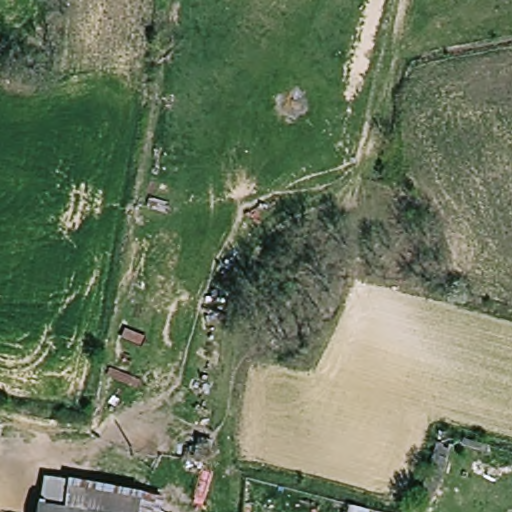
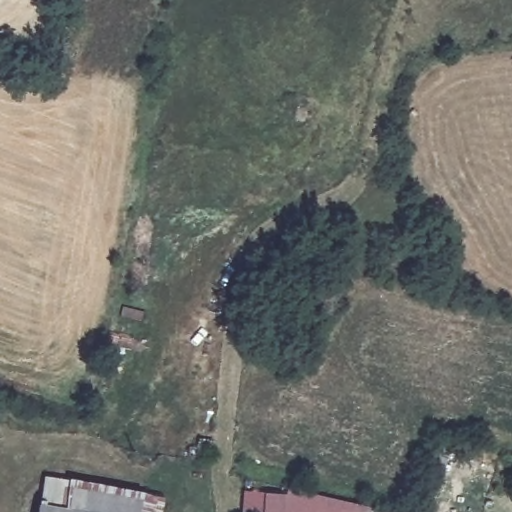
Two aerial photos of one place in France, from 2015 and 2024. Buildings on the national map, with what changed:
unchanged [(165,512),(43,512),(48,476),(168,496),(165,512)]
new [(285,494),(287,487),(371,507),(370,512),(242,512),(243,491),(285,494)]

